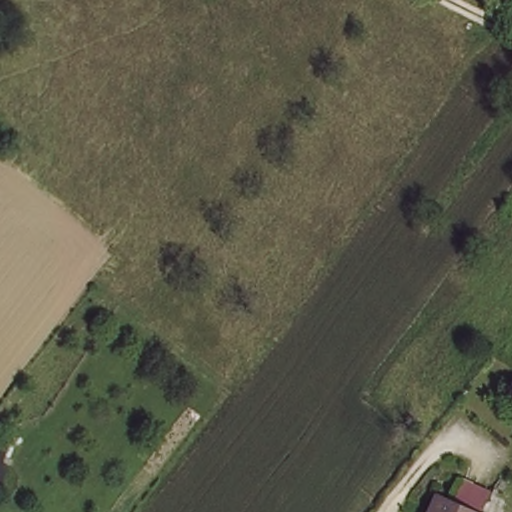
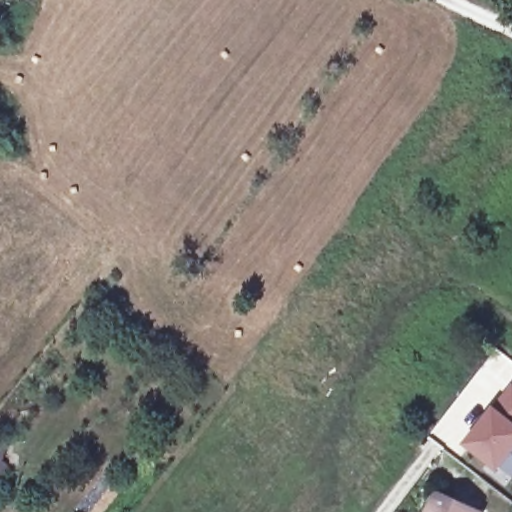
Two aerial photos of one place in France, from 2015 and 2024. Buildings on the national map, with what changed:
new [(494,407),(512,385),(512,456),(498,473),(464,446),(494,407)]
unchanged [(458,510),(464,512),(433,512),(438,500),(458,510)]

